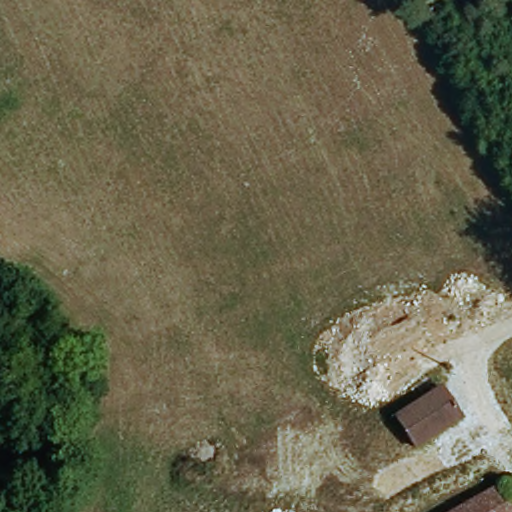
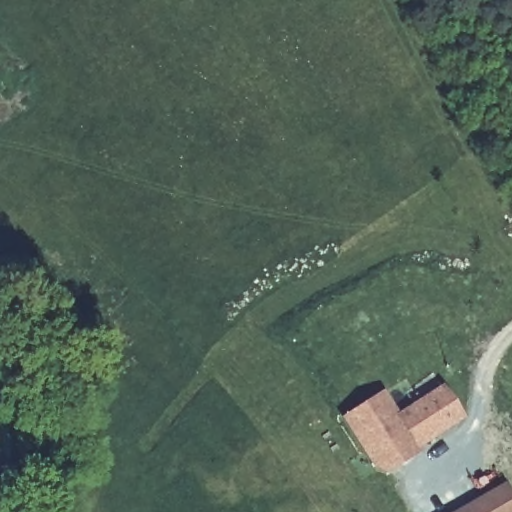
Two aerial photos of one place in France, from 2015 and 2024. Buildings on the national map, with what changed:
unchanged [(395,419),(444,385),(466,421),(417,450),(400,455),(377,429),(395,419)]
new [(420,454),(389,475),(375,471),(342,420),(382,392),(398,416),(395,419),(377,429),(400,455),(417,450),(420,454)]
unchanged [(512,479),(512,497),(510,498),(512,501),(512,512),(456,512),(512,479)]

